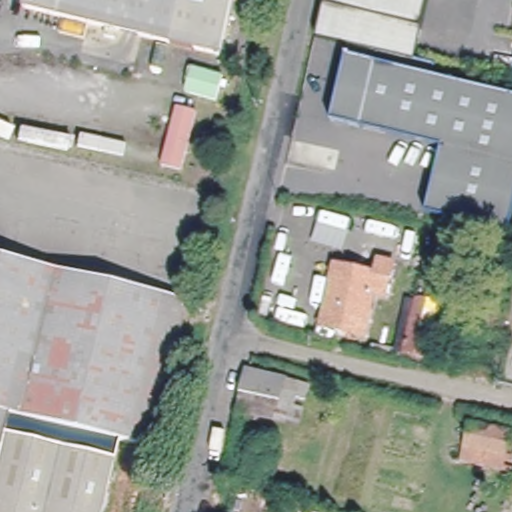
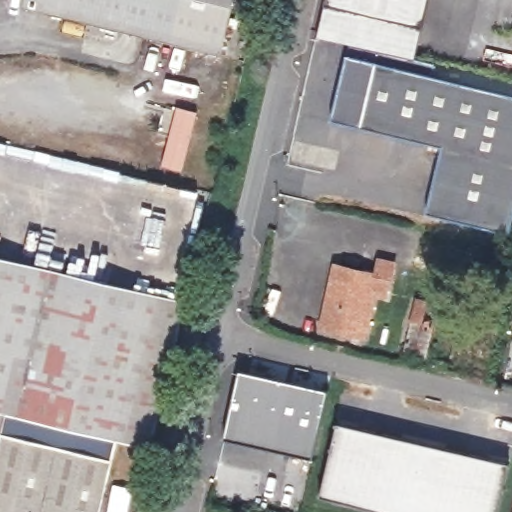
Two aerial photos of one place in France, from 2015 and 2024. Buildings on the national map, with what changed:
unchanged [(25,0),(252,0),(238,59),(24,5),(25,0)]
unchanged [(410,59),(358,47),(348,45),(316,38),(326,0),(429,0),(414,60),(410,59)]
unchanged [(358,47),(410,59),(414,60),(435,65),(432,77),(512,95),(512,230),(511,234),(426,215),(442,148),(330,123),(348,45),(358,47)]
unchanged [(180,104),(203,110),(188,170),(163,164),(180,104)]
unchanged [(0,263),(155,303),(120,449),(0,419),(0,263)]
unchanged [(387,273),(379,301),(368,298),(357,341),(317,330),(332,271),(370,281),(374,269),(387,273)]
demolished [(415,304),(435,309),(424,363),(405,358),(415,304)]
demolished [(447,367),(454,338),(467,341),(469,333),(488,337),(482,362),(493,365),(489,383),(446,373),(430,370),(431,364),(447,367)]
new [(239,374),(329,395),(319,436),(289,430),(291,421),(270,416),(269,419),(236,412),(240,394),(235,392),(239,374)]
demolished [(245,399),(250,378),(289,386),(286,398),(301,401),(299,412),(283,409),(245,401),(245,399)]
new [(235,392),(240,394),(236,412),(269,419),(270,416),(291,421),(289,430),(319,436),(313,463),(223,442),(235,392)]
new [(322,495),(338,424),(507,465),(497,512),(394,512),(322,495)]
demolished [(461,443),(465,425),(512,435),(512,456),(461,443)]

